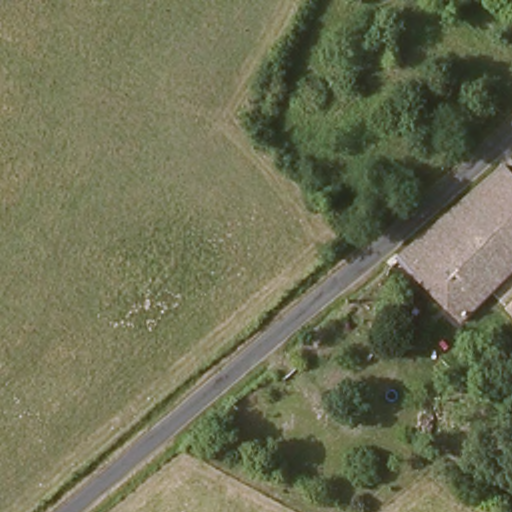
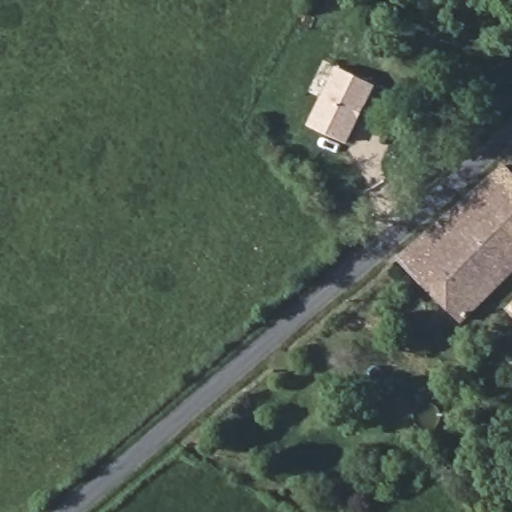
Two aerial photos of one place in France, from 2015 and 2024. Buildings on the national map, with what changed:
new [(335,66),(375,85),(347,143),(307,124),(335,66)]
unchanged [(512,176),(512,195),(493,212),(512,232),(512,271),(458,325),(396,260),(502,166),(512,176)]
unchanged [(512,195),(512,232),(493,212),(512,195)]
unchanged [(512,310),(512,312),(511,310),(512,310)]

